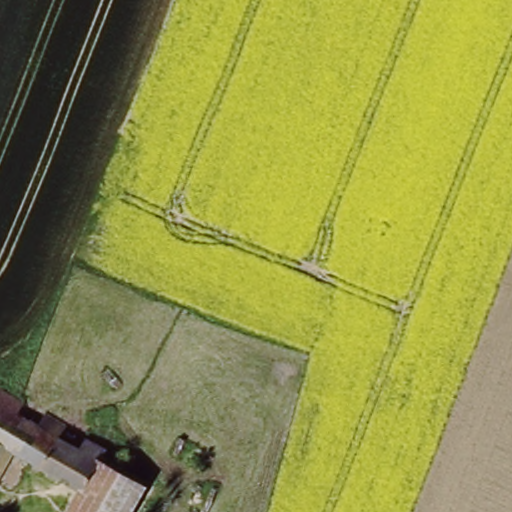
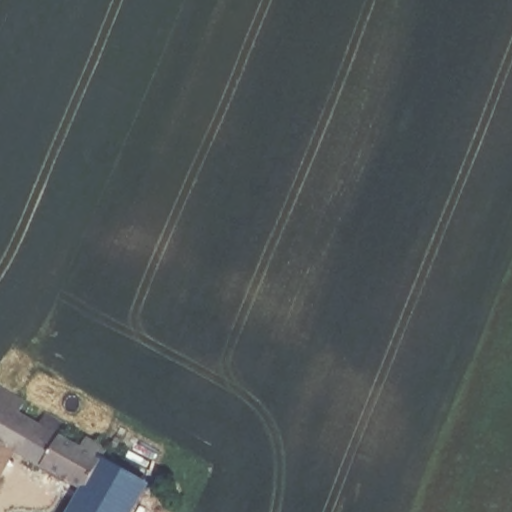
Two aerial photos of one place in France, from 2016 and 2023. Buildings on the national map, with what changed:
unchanged [(23,395),(35,402),(29,414),(25,420),(0,461),(0,384),(23,395)]
unchanged [(25,420),(29,414),(45,423),(52,411),(75,425),(67,437),(87,448),(67,484),(17,453),(0,481),(0,461),(25,420)]
unchanged [(67,484),(87,448),(92,440),(110,451),(105,459),(152,487),(138,512),(76,512),(86,495),(67,484)]

